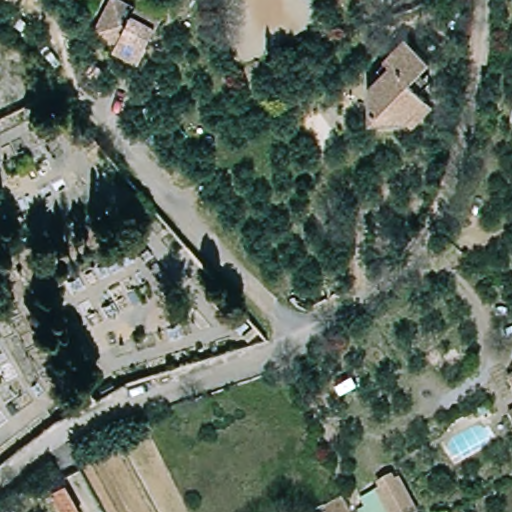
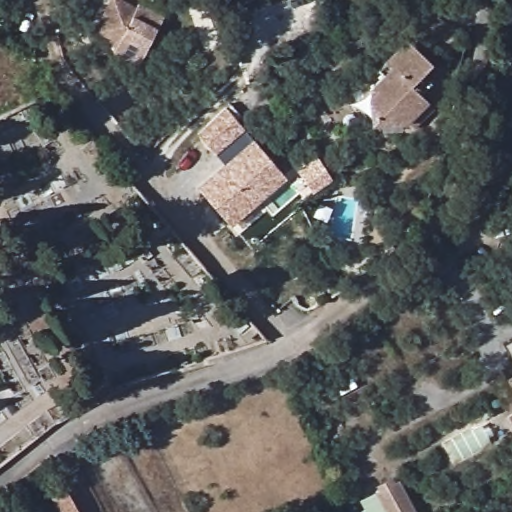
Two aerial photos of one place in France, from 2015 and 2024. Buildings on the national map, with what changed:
unchanged [(136,70),(113,60),(116,48),(90,38),(105,5),(131,20),(142,1),(163,14),(136,70)]
unchanged [(374,117),(369,88),(384,71),(380,66),(406,38),(430,59),(421,69),(432,80),(421,91),(429,99),(437,106),(417,126),(409,119),(374,117)]
new [(226,111),(242,127),(215,154),(199,137),(226,111)]
new [(253,139),(287,179),(231,227),(198,188),(224,164),(216,153),(242,127),(253,139)]
unchanged [(511,372),(512,371),(512,374),(511,372)]
unchanged [(394,512),(378,512),(365,483),(386,474),(403,509),(394,512)]

